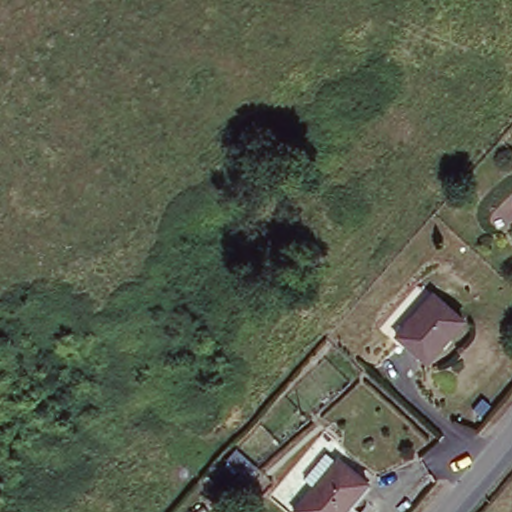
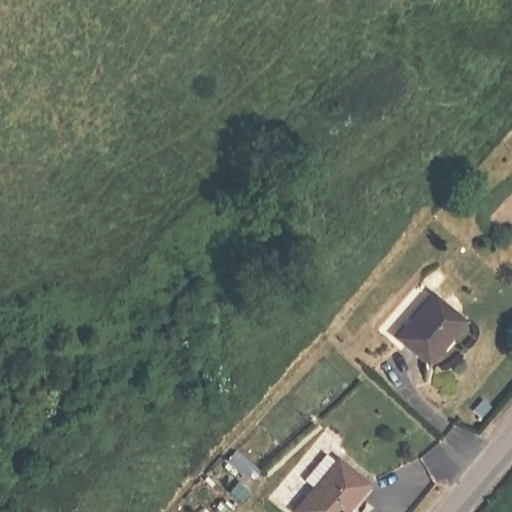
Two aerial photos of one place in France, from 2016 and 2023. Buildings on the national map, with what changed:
unchanged [(463,317),(423,358),(395,332),(436,292),(463,317)]
unchanged [(308,480),(331,454),(339,462),(341,460),(372,485),(349,512),(298,512),(318,489),(308,480)]

